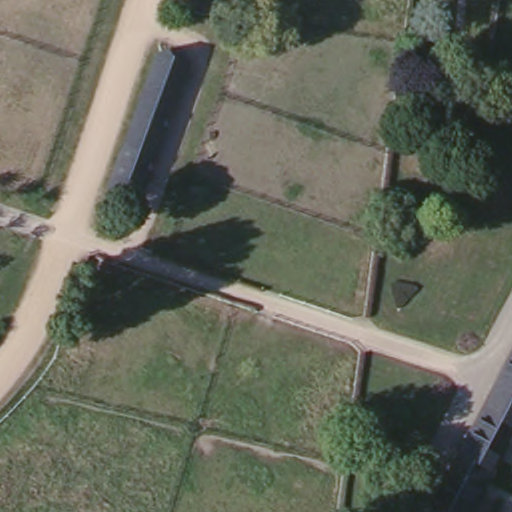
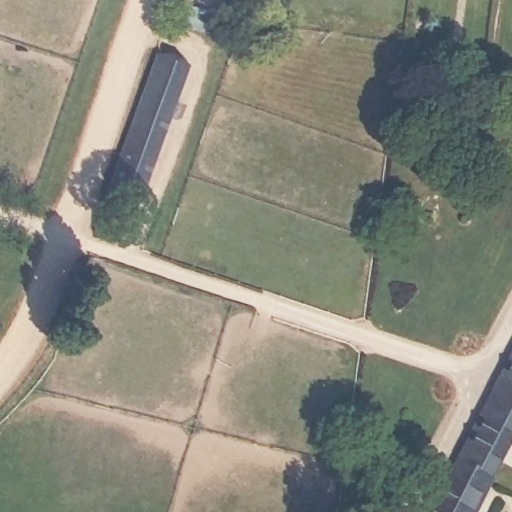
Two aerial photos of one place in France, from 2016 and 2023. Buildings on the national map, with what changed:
unchanged [(106,184),(146,88),(148,89),(163,53),(191,64),(136,196),(106,184)]
unchanged [(471,512),(427,512),(512,340),(512,434),(471,512)]

